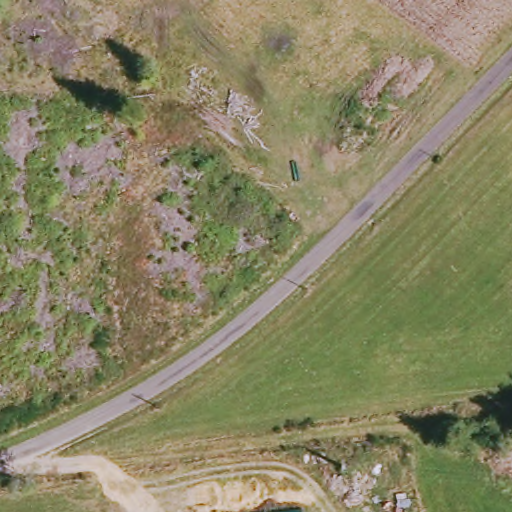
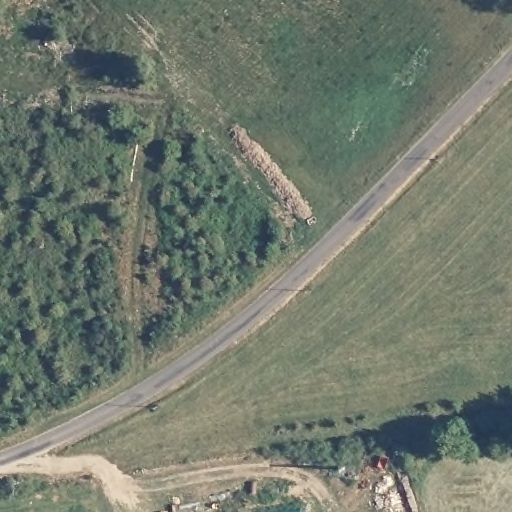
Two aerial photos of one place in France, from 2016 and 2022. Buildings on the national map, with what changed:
unchanged [(299,512),(268,512),(299,508),(299,512)]

